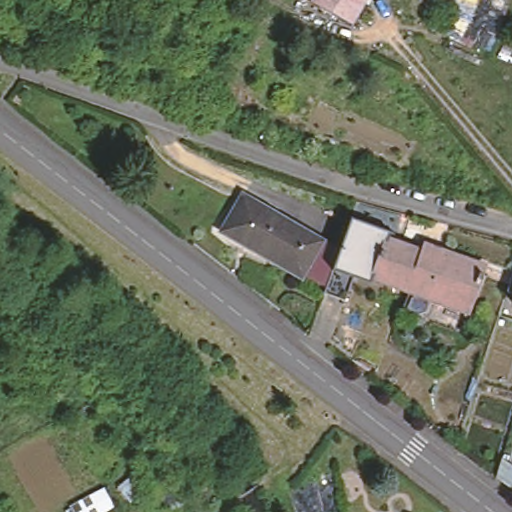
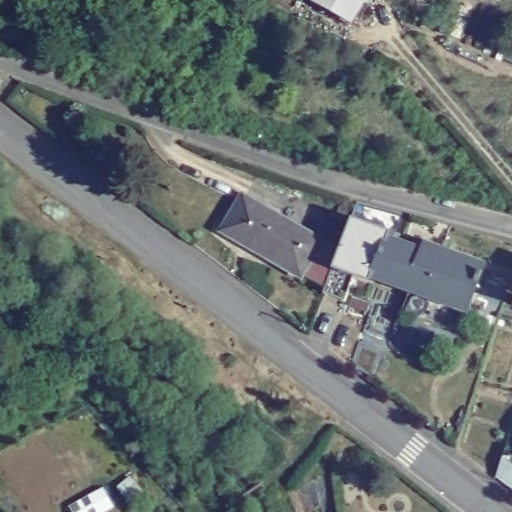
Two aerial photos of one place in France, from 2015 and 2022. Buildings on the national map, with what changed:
unchanged [(344,21),(313,0),(358,0),(344,21)]
unchanged [(218,229),(238,196),(316,242),(333,252),(345,219),(384,230),(381,240),(367,278),(349,272),(339,301),(318,295),(319,292),(296,277),(218,229)]
unchanged [(433,257),(436,252),(479,266),(465,305),(408,285),(405,292),(367,278),(381,240),(433,257)]
unchanged [(506,295),(512,275),(512,296),(508,295),(506,295)]

